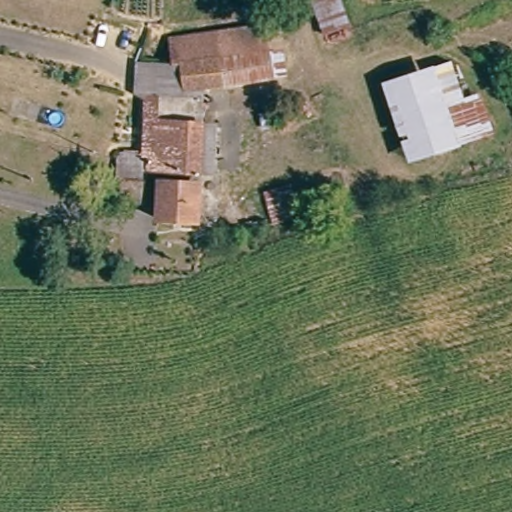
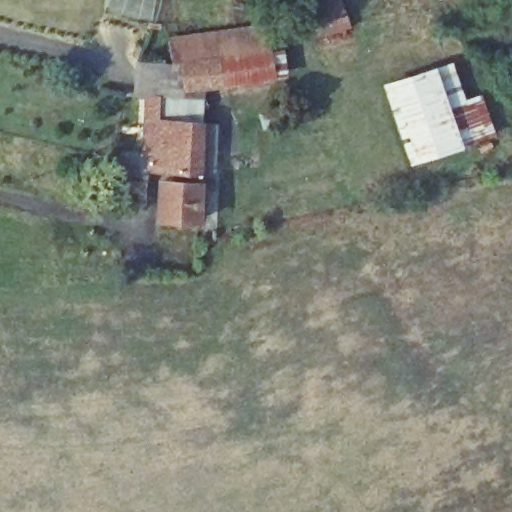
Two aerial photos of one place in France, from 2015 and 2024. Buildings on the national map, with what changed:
unchanged [(328,32),(315,0),(345,0),(354,27),(328,32)]
unchanged [(268,27),(271,46),(172,51),(172,30),(268,27)]
unchanged [(271,46),(275,72),(202,77),(172,79),(172,60),(172,51),(271,46)]
unchanged [(157,212),(157,188),(156,175),(150,175),(150,201),(117,200),(119,150),(144,150),(147,94),(135,94),(135,60),(172,60),(172,79),(202,77),(199,177),(199,190),(197,213),(157,212)]
unchanged [(385,84),(436,67),(453,62),(468,97),(485,91),(500,132),(467,141),(468,145),(411,162),(385,84)]

